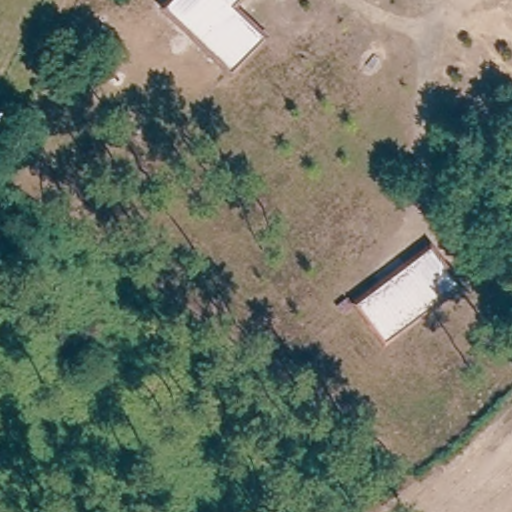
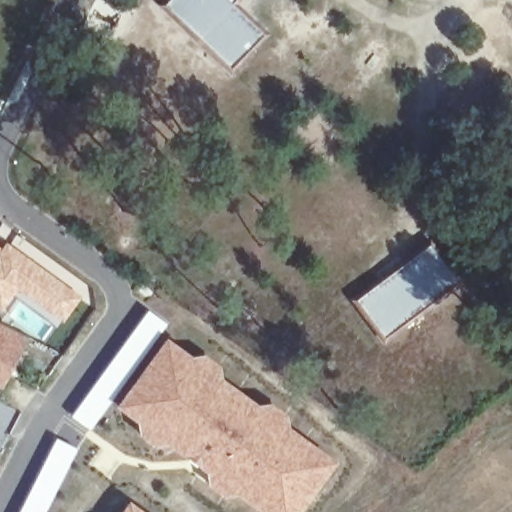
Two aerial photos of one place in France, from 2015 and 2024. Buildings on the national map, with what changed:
unchanged [(229,0),(226,2),(259,34),(224,69),(156,3),(160,0),(229,0)]
new [(5,240),(81,297),(61,322),(16,290),(0,311),(0,247),(5,240)]
unchanged [(350,301),(426,248),(454,287),(378,339),(350,301)]
new [(148,311),(166,324),(89,430),(70,416),(148,311)]
new [(0,389),(0,322),(28,336),(3,390),(0,389)]
new [(190,356),(204,354),(217,364),(219,377),(255,406),(269,401),(286,415),(288,426),(338,462),(301,512),(259,512),(237,496),(224,497),(206,484),(204,473),(166,444),(153,446),(136,435),(135,422),(113,405),(165,338),(190,356)]
new [(45,512),(19,512),(56,439),(77,449),(45,512)]
new [(140,512),(122,512),(128,503),(140,512)]

